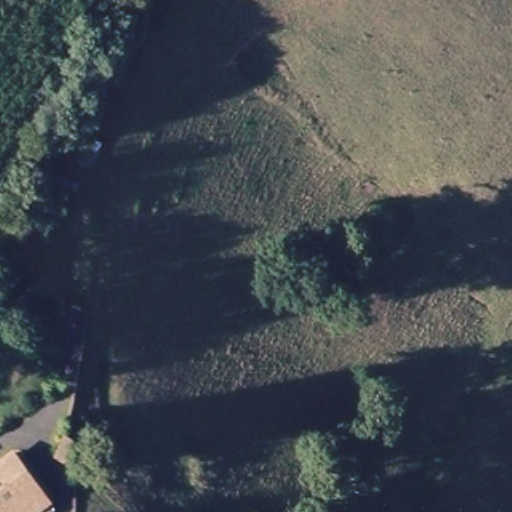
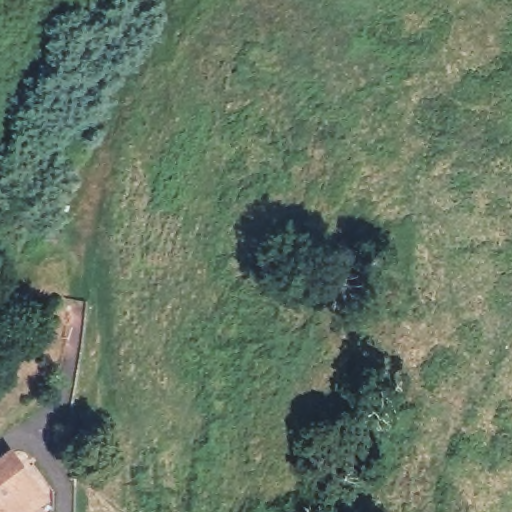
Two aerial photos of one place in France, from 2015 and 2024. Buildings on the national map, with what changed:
unchanged [(95,420),(82,441),(69,431),(81,412),(95,420)]
unchanged [(49,487),(14,512),(0,512),(0,453),(15,442),(49,487)]

